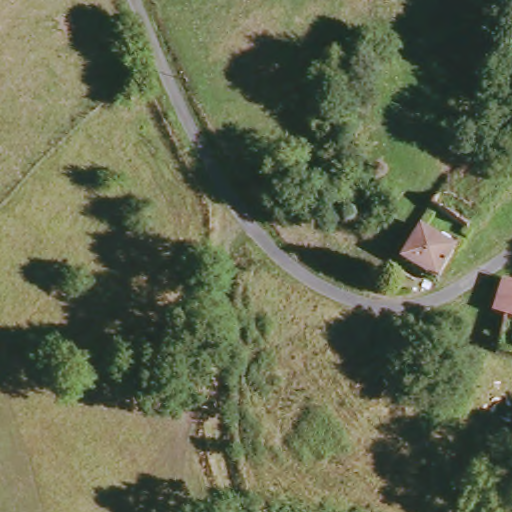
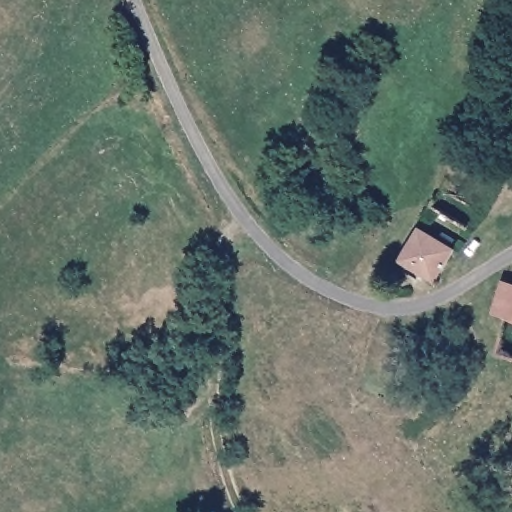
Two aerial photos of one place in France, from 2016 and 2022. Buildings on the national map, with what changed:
unchanged [(425,226),(460,247),(441,281),(405,259),(425,226)]
unchanged [(511,320),(499,317),(507,283),(512,285),(512,321),(511,320)]

